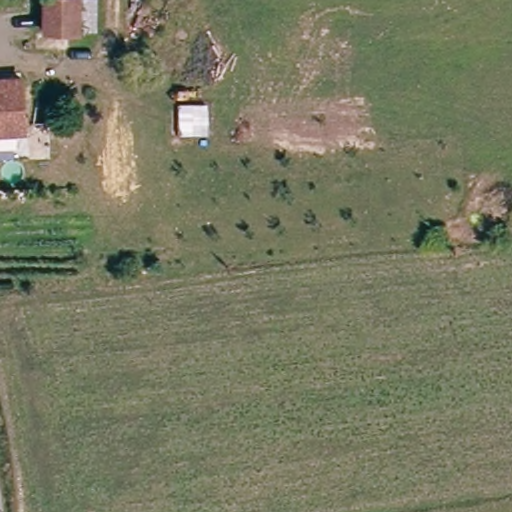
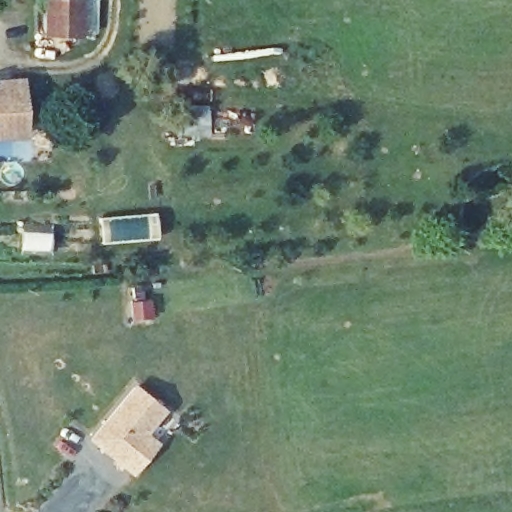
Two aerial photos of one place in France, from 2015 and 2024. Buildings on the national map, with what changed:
unchanged [(83,35),(50,35),(52,0),(100,0),(102,32),(83,35)]
unchanged [(24,135),(0,136),(0,83),(19,81),(24,135)]
new [(133,384),(166,410),(148,433),(160,442),(134,475),(88,439),(133,384)]

